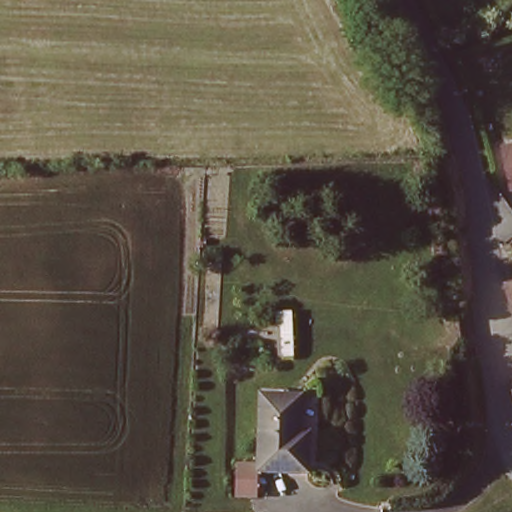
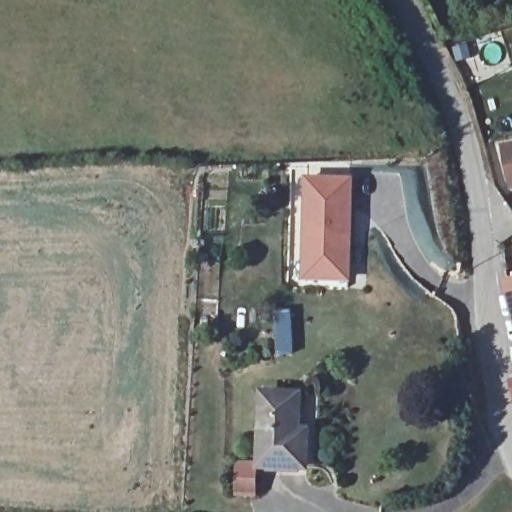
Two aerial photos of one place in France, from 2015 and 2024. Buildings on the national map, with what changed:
unchanged [(512,156),(512,165),(510,157),(512,156)]
new [(301,281),(306,176),(356,177),(353,283),(301,281)]
unchanged [(512,252),(512,313),(495,256),(512,252)]
unchanged [(512,382),(512,391),(510,383),(512,382)]
unchanged [(262,393),(296,395),(294,430),(306,430),(304,469),(259,467),(262,393)]

